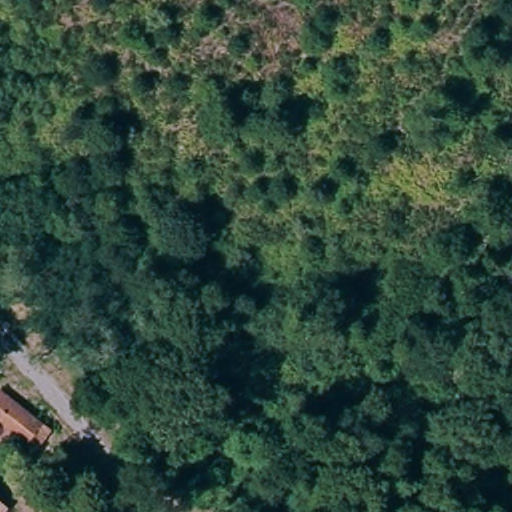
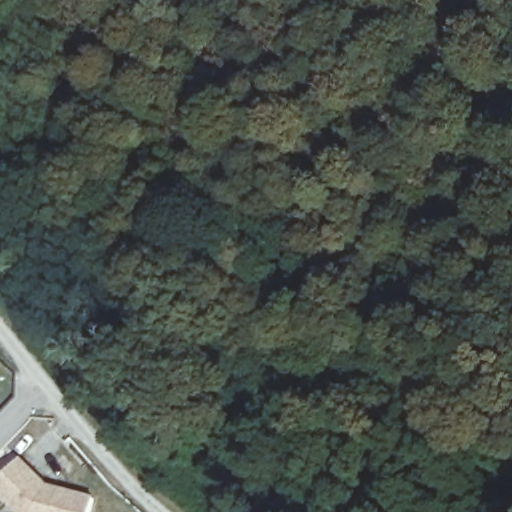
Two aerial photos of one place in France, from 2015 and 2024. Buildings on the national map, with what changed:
demolished [(26,445),(18,439),(9,451),(0,443),(0,437),(6,430),(0,424),(0,392),(42,425),(26,445)]
new [(93,497),(90,512),(16,512),(0,497),(0,477),(20,458),(45,482),(93,497)]

